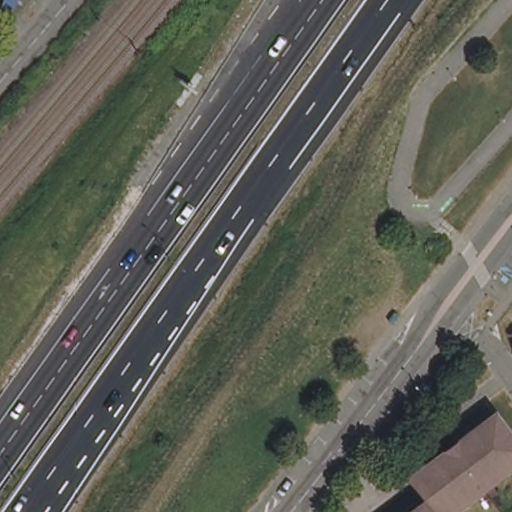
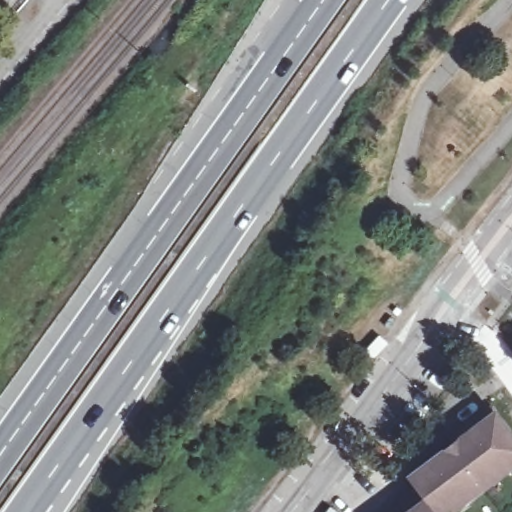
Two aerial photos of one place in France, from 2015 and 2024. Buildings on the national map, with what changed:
unchanged [(456,444),(457,443),(457,441),(495,412),(500,419),(512,436),(512,468),(454,512),(435,512),(420,493),(413,483),(460,449),(456,444)]
unchanged [(435,512),(394,512),(420,493),(435,512)]

